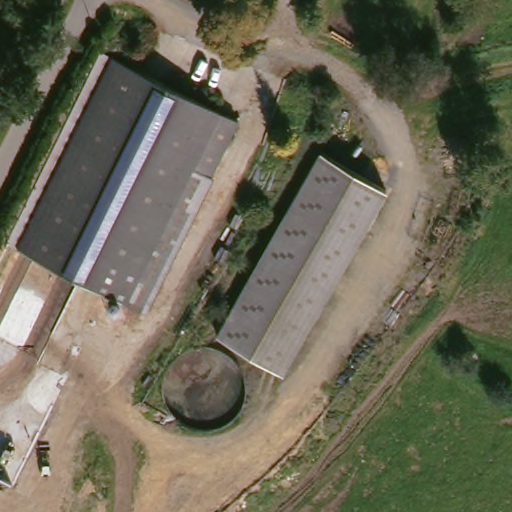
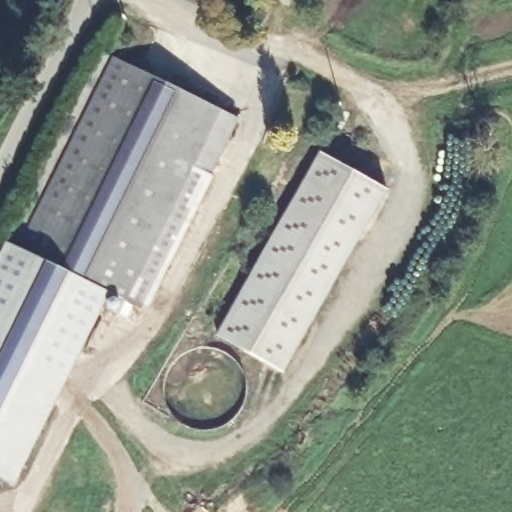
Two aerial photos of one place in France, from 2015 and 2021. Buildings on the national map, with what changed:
unchanged [(122,55),(177,81),(155,124),(222,154),(178,250),(154,303),(137,296),(46,254),(28,246),(45,211),(80,141),(122,55)]
unchanged [(177,81),(241,111),(222,154),(155,124),(177,81)]
unchanged [(404,182),(305,367),(239,332),(338,146),(404,182)]
new [(109,292),(15,486),(0,478),(0,250),(4,241),(109,292)]

